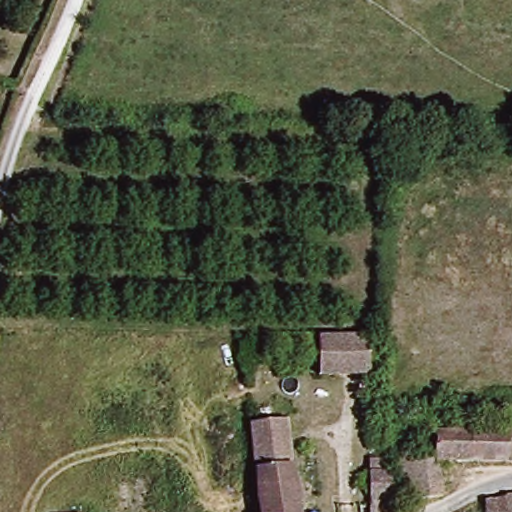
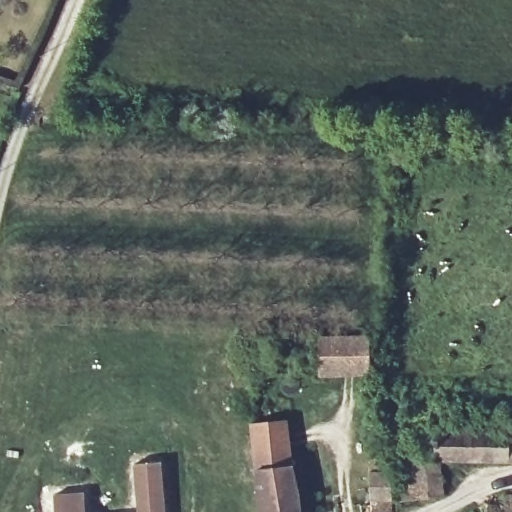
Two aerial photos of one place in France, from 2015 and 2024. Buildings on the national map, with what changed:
unchanged [(377,376),(323,376),(322,339),(377,337),(377,376)]
unchanged [(509,406),(512,406),(512,463),(490,463),(452,462),(452,497),(407,503),(400,456),(426,451),(424,434),(447,431),(447,423),(509,420),(509,406)]
unchanged [(300,512),(268,512),(256,433),(284,429),(300,512)]
unchanged [(378,451),(392,450),(402,512),(373,512),(364,455),(378,451)]
new [(161,461),(165,512),(137,512),(134,465),(161,461)]
new [(86,493),(87,512),(55,512),(53,495),(86,493)]
unchanged [(512,493),(512,512),(487,512),(484,499),(512,493)]

